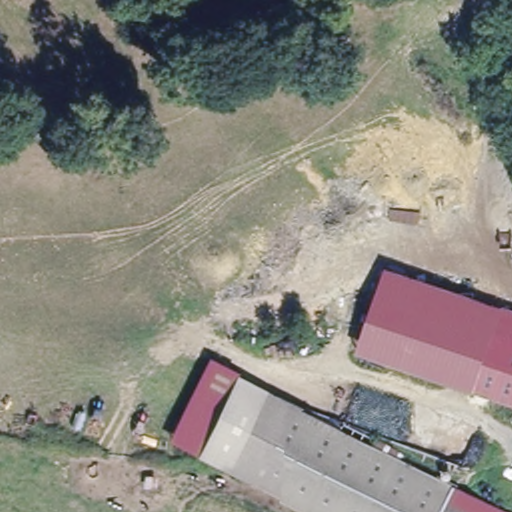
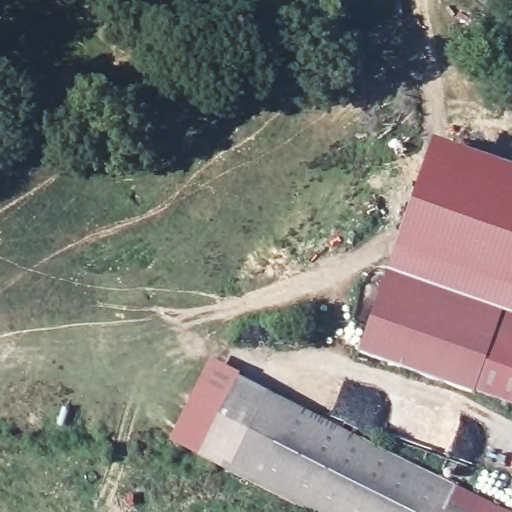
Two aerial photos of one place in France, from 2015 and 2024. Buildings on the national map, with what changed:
new [(501,314),(388,274),(432,143),(512,169),(512,318),(501,314)]
unchanged [(473,395),(360,356),(388,274),(501,314),(473,395)]
unchanged [(512,318),(512,408),(473,395),(501,314),(512,318)]
unchanged [(212,462),(187,448),(232,367),(257,380),(212,462)]
unchanged [(456,512),(310,512),(212,462),(257,380),(466,493),(456,512)]
unchanged [(456,512),(466,493),(500,512),(456,512)]

